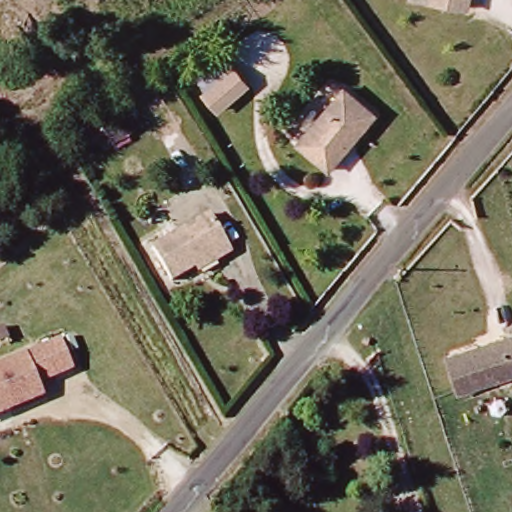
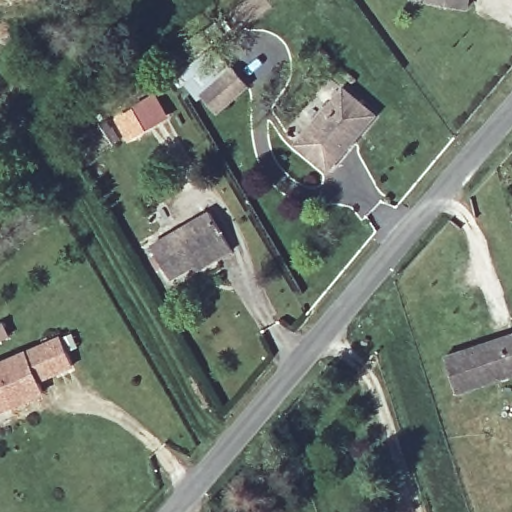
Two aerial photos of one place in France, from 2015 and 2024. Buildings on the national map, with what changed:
unchanged [(442,0),(470,0),(469,5),(442,0)]
unchanged [(248,87),(217,117),(197,96),(203,90),(192,78),(185,85),(174,74),(210,52),(248,87)]
unchanged [(372,111),(326,165),(296,140),(342,85),(372,111)]
new [(128,112),(133,106),(149,98),(150,101),(158,96),(170,118),(146,131),(144,127),(110,144),(99,123),(127,109),(128,112)]
unchanged [(209,251),(165,275),(146,241),(205,209),(226,247),(211,255),(209,251)]
unchanged [(510,332),(512,340),(512,372),(451,392),(438,356),(510,332)]
unchanged [(39,382),(44,396),(0,413),(0,363),(57,337),(72,368),(39,382)]

